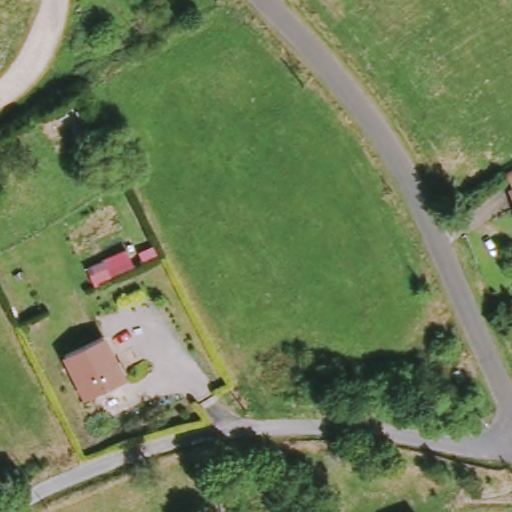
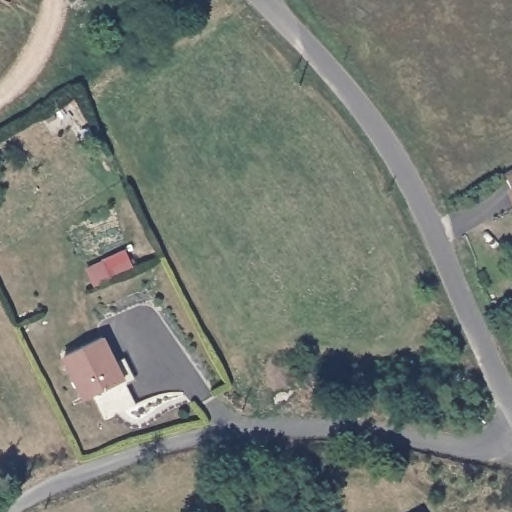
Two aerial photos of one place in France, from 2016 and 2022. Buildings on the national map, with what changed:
unchanged [(506,192),(512,190),(512,205),(506,192)]
unchanged [(104,342),(126,383),(90,403),(68,362),(104,342)]

